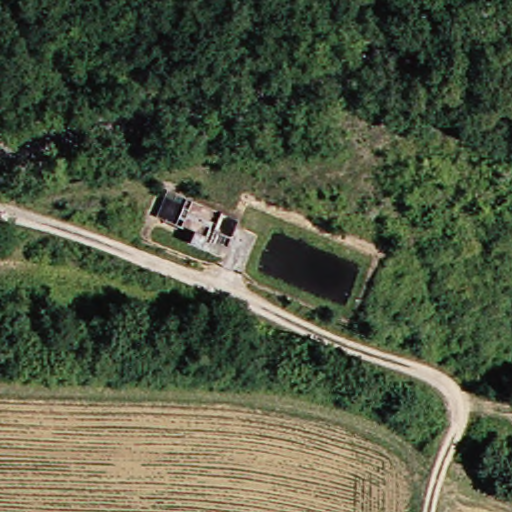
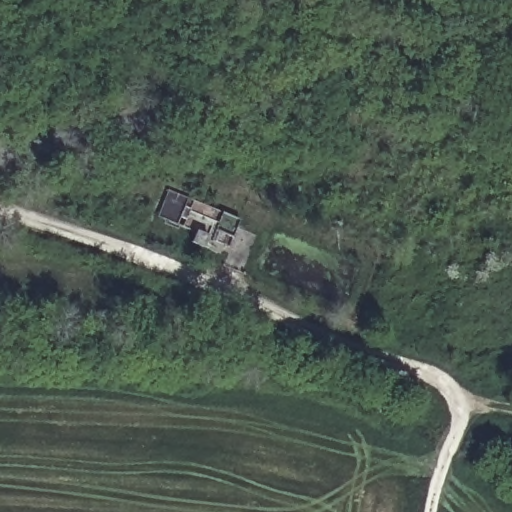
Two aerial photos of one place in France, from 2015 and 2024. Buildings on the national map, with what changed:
unchanged [(161,191),(184,202),(216,214),(231,222),(226,241),(220,250),(206,244),(197,253),(183,249),(192,234),(194,228),(176,219),(175,229),(150,220),(161,191)]

